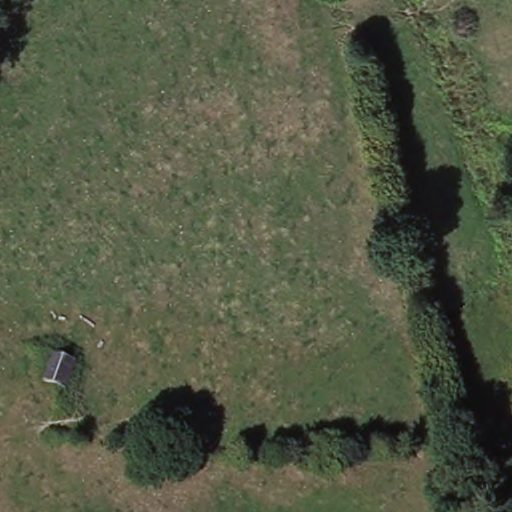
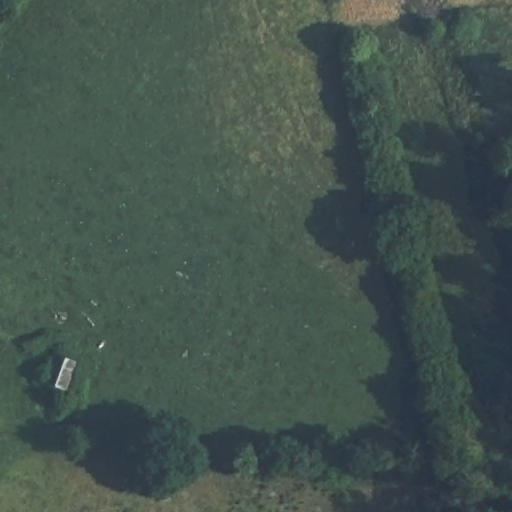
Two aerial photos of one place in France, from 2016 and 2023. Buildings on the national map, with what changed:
unchanged [(44,384),(54,362),(53,360),(74,368),(66,393),(63,393),(44,384)]

